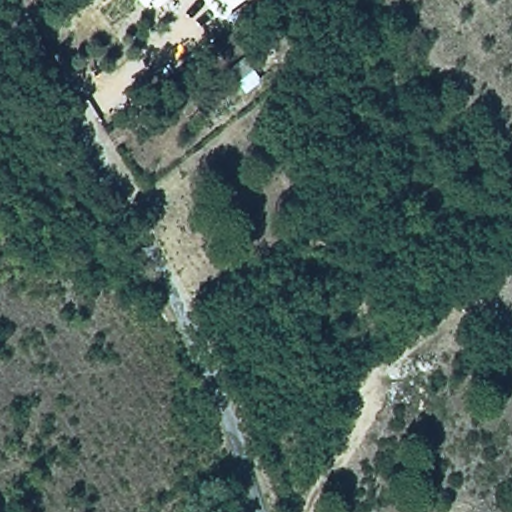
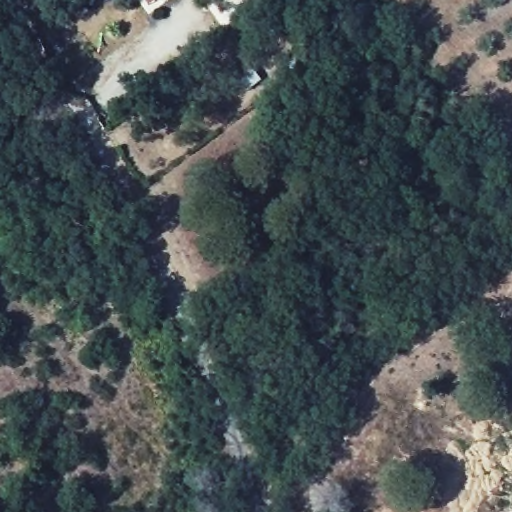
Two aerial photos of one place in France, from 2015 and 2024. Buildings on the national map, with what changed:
unchanged [(262,47),(277,71),(220,104),(205,82),(262,47)]

